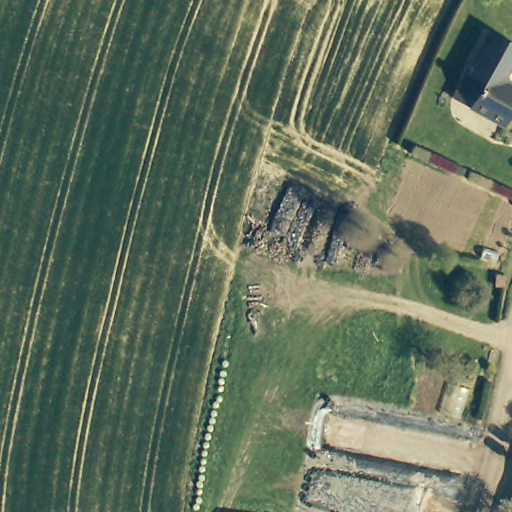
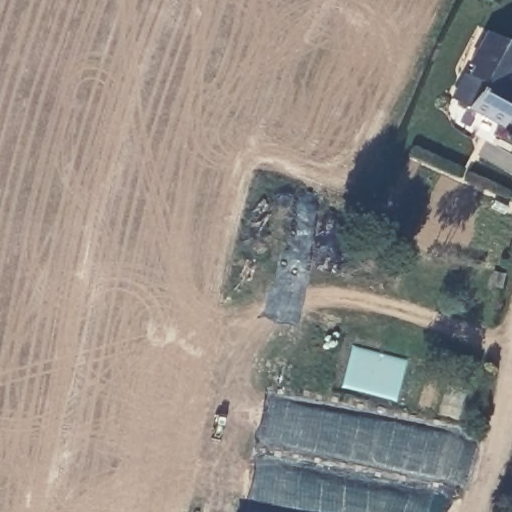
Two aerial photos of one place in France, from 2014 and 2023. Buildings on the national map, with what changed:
unchanged [(487,34),(512,46),(512,61),(502,83),(512,88),(512,108),(502,130),(466,112),(479,85),(464,78),(487,34)]

